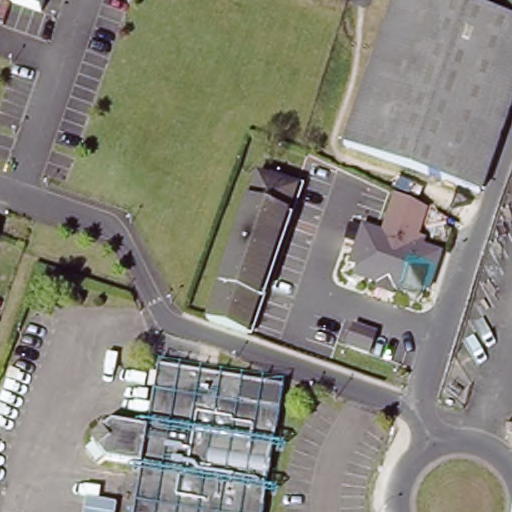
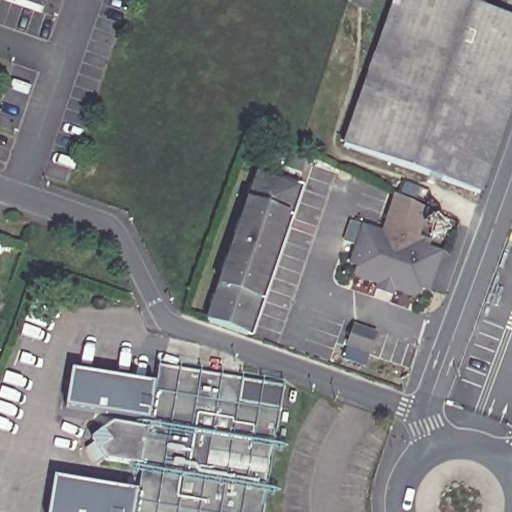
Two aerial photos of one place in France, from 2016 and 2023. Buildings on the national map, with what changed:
unchanged [(47,0),(44,8),(21,0),(47,0)]
unchanged [(479,197),(344,149),(396,0),(446,0),(512,24),(512,104),(479,197)]
unchanged [(209,322),(211,316),(220,289),(234,252),(247,214),(250,207),(260,177),(301,191),(290,221),(288,227),(275,267),(262,303),(252,331),(250,338),(209,322)]
unchanged [(380,234),(394,193),(430,210),(420,236),(427,239),(425,249),(380,234)]
unchanged [(446,257),(433,294),(427,292),(423,302),(360,281),(363,271),(355,268),(369,231),(446,257)]
unchanged [(142,467),(106,462),(92,442),(112,426),(147,431),(157,367),(240,378),(282,386),(279,406),(264,512),(214,512),(137,500),(142,467)]
new [(148,420),(66,407),(71,368),(154,383),(148,420)]
new [(137,500),(135,512),(48,512),(54,476),(138,490),(137,500)]
unchanged [(137,500),(214,512),(135,512),(137,500)]

